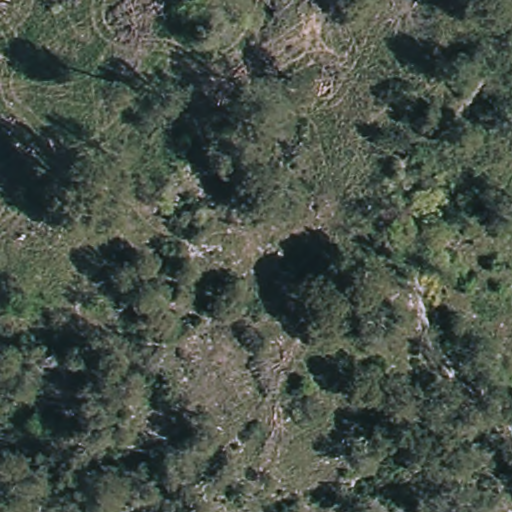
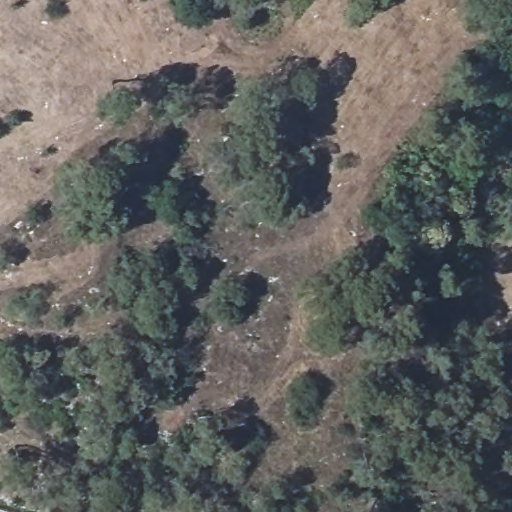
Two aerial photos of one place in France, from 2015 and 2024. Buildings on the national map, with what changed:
[]

